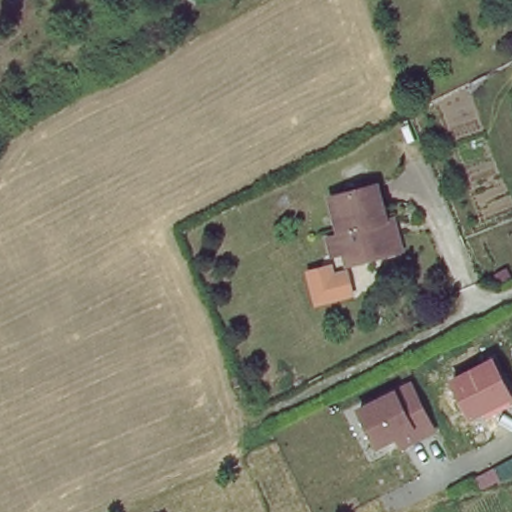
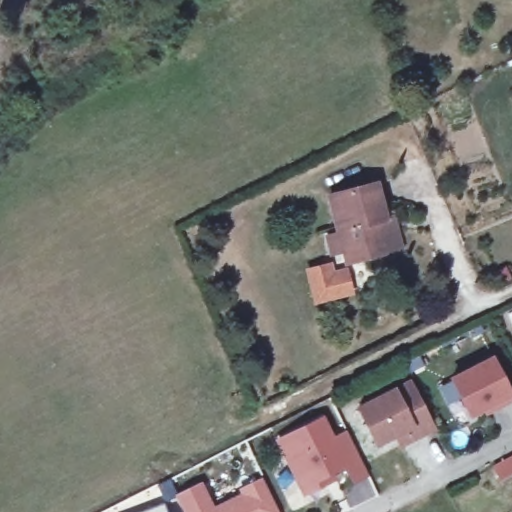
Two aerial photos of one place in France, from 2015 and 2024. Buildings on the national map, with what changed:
unchanged [(325,234),(338,230),(328,191),(374,180),(383,216),(392,214),(400,246),(384,249),(345,258),(343,250),(330,254),(325,234)]
unchanged [(333,264),(336,271),(345,268),(352,296),(315,306),(305,271),(333,264)]
unchanged [(492,355),(512,396),(512,406),(488,419),(485,412),(470,419),(448,378),(492,355)]
unchanged [(432,431),(398,448),(395,438),(373,446),(357,410),(378,397),(410,382),(432,431)]
new [(328,409),(337,428),(350,423),(371,468),(352,478),(347,468),(307,488),(280,433),(328,409)]
unchanged [(511,460),(512,463),(512,479),(497,486),(490,472),(511,460)]
new [(217,504),(245,489),(242,483),(263,472),(283,512),(189,512),(178,489),(203,477),(217,504)]

